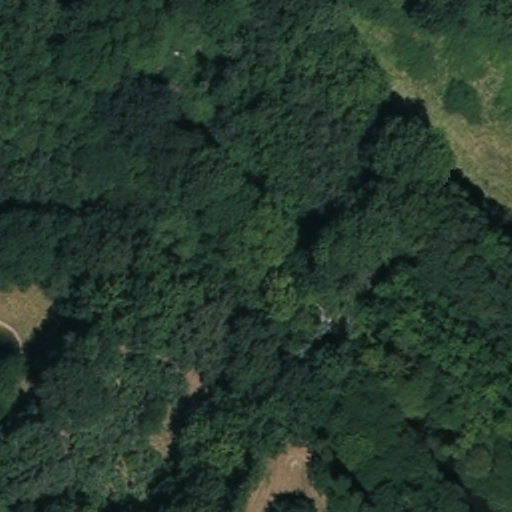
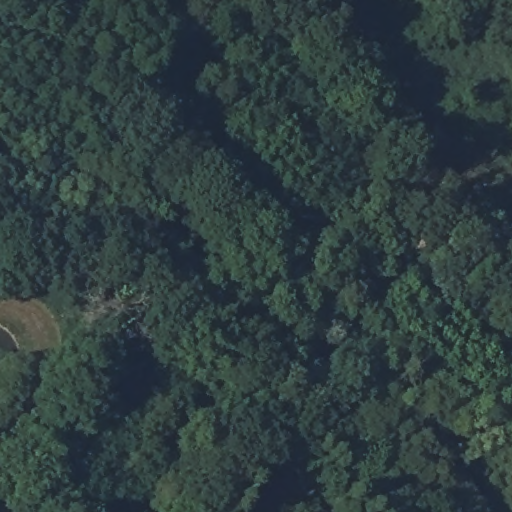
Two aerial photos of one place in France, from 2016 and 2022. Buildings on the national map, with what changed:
unchanged [(316,339),(299,325),(314,303),(333,315),(316,339)]

